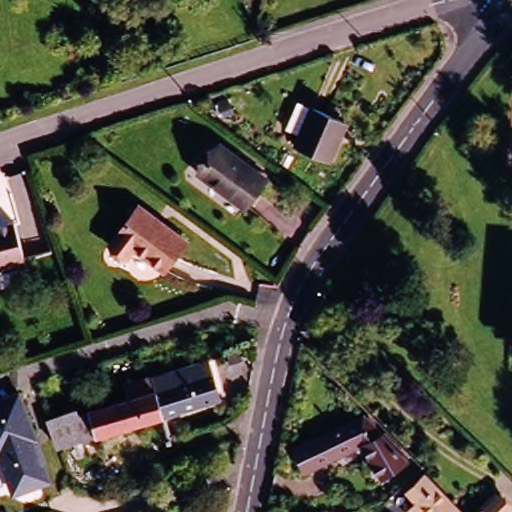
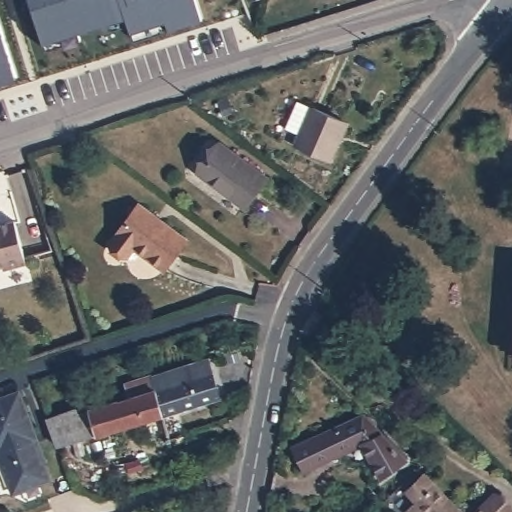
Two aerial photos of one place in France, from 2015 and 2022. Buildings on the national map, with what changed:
new [(22,0),(31,0),(32,5),(24,7),(22,0)]
new [(131,31),(127,17),(44,43),(30,0),(195,0),(202,20),(169,30),(134,41),(131,31)]
new [(127,17),(129,24),(111,30),(109,22),(127,17)]
new [(0,83),(0,29),(15,78),(0,83)]
new [(78,32),(81,39),(46,50),(44,43),(78,32)]
unchanged [(326,160),(294,146),(299,134),(284,128),(296,100),(311,106),(343,120),(326,160)]
unchanged [(263,177),(241,206),(195,172),(216,142),(263,177)]
unchanged [(163,270),(132,249),(125,256),(107,242),(135,205),(183,240),(163,270)]
unchanged [(5,267),(3,263),(0,264),(0,221),(13,216),(26,260),(5,267)]
unchanged [(74,408),(76,413),(118,400),(116,392),(126,388),(124,383),(149,376),(206,358),(217,398),(161,415),(55,446),(45,417),(74,408)]
unchanged [(0,402),(20,395),(47,480),(10,493),(0,463),(0,402)]
unchanged [(361,415),(404,460),(380,479),(360,445),(302,471),(291,447),(361,415)]
unchanged [(414,501),(406,491),(421,477),(456,512),(405,512),(414,501)]
unchanged [(494,495),(510,510),(509,512),(477,512),(494,495)]
new [(364,510),(365,512),(359,512),(364,510)]

